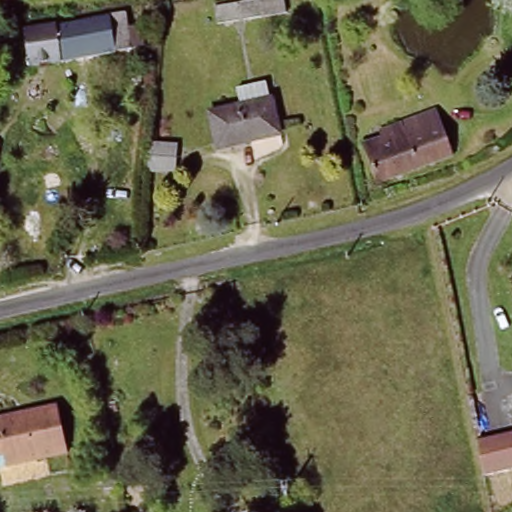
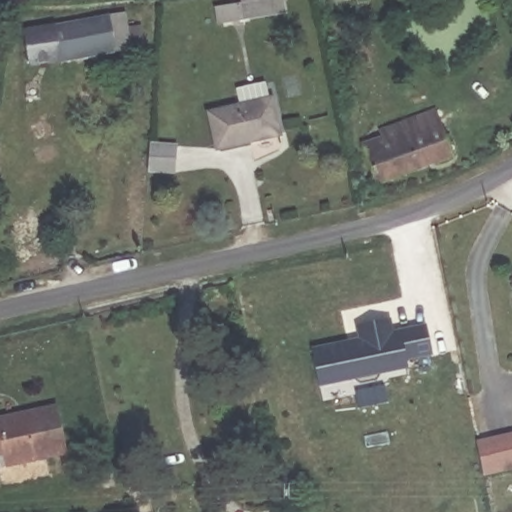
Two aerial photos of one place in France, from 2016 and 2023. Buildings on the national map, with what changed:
unchanged [(287,19),(220,26),(217,8),(243,5),(243,0),(285,0),(287,19)]
unchanged [(107,25),(106,20),(126,17),(130,50),(28,66),(24,34),(107,25)]
unchanged [(237,91),(263,86),(267,101),(270,101),(278,137),(217,149),(210,114),(241,107),(237,91)]
unchanged [(442,114),(455,159),(377,186),(359,134),(383,126),(385,133),(442,114)]
unchanged [(167,147),(167,177),(138,176),(140,147),(167,147)]
unchanged [(512,287),(509,277),(512,276),(512,287)]
new [(408,362),(410,370),(381,375),(377,381),(362,384),(356,381),(320,388),(312,349),(359,338),(357,326),(392,320),(396,332),(428,325),(435,357),(408,362)]
unchanged [(49,402),(62,446),(0,462),(0,415),(49,402)]
demolished [(512,427),(512,464),(481,470),(474,435),(512,427)]
new [(512,434),(512,469),(483,476),(476,442),(512,434)]
unchanged [(292,512),(268,512),(290,506),(292,512)]
unchanged [(1,512),(0,512),(0,510),(1,512)]

